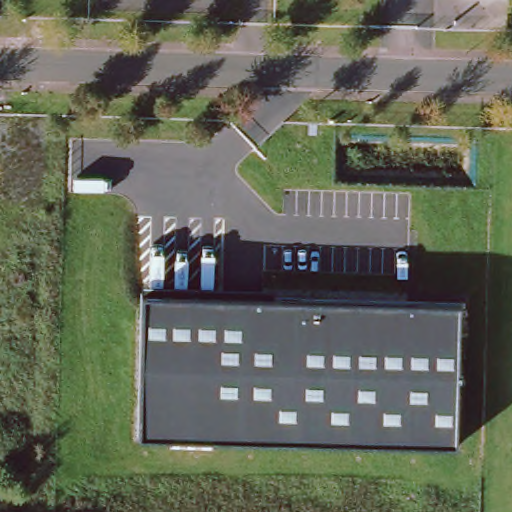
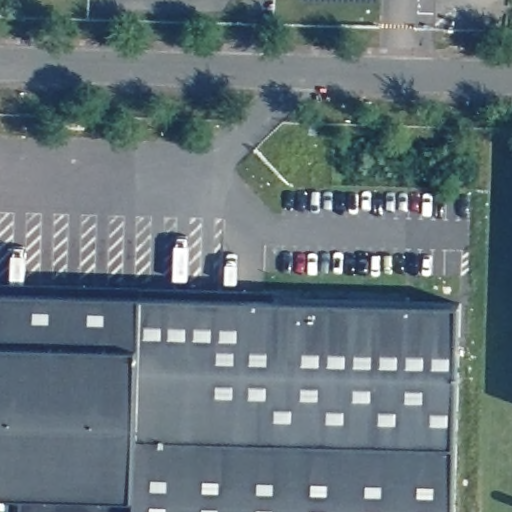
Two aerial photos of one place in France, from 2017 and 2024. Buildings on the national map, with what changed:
new [(87,110),(87,122),(67,121),(67,109),(87,110)]
new [(140,433),(457,440),(454,512),(21,512),(22,486),(0,486),(0,284),(142,288),(140,433)]
unchanged [(462,297),(457,440),(140,433),(142,288),(462,297)]

